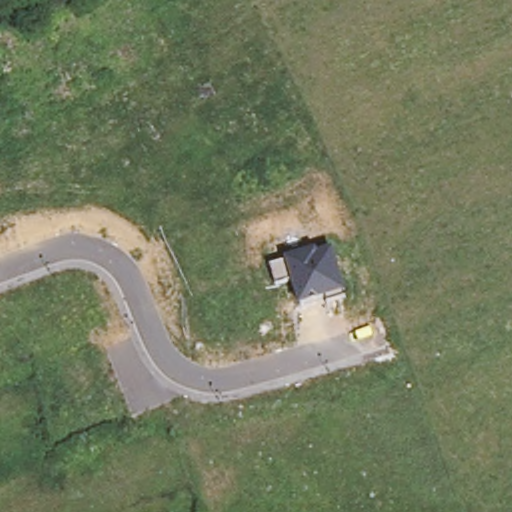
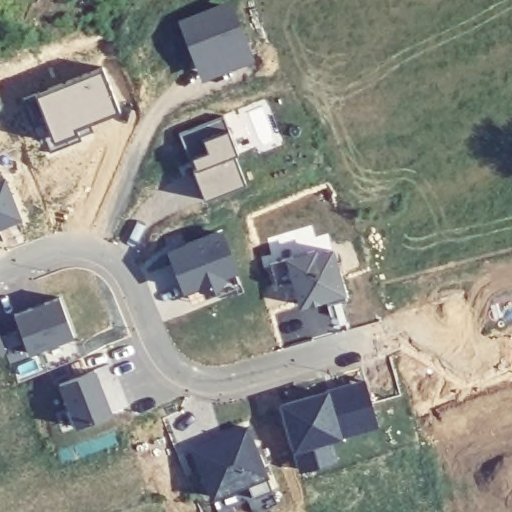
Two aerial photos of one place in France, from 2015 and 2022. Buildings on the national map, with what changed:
new [(255,60),(201,80),(176,20),(226,0),(231,0),(255,60)]
new [(229,129),(237,152),(234,154),(246,182),(205,199),(193,170),(196,169),(197,169),(192,157),(189,159),(180,134),(223,117),(229,129)]
new [(0,225),(0,179),(4,178),(20,217),(0,225)]
new [(190,297),(184,281),(170,246),(220,226),(234,262),(242,283),(190,297)]
unchanged [(292,280),(277,284),(270,264),(286,260),(286,256),(316,249),(316,252),(333,248),(345,293),(345,296),(327,301),(326,299),(300,306),(292,280)]
new [(75,335),(27,352),(12,313),(59,296),(75,335)]
new [(0,351),(0,336),(5,349),(0,351)]
new [(112,412),(76,426),(58,383),(95,370),(112,412)]
new [(301,470),(282,405),(326,392),(365,381),(367,386),(375,414),(377,424),(339,435),(329,438),(335,460),(325,463),(301,470)]
new [(220,438),(247,426),(272,490),(254,497),(247,482),(212,497),(192,449),(211,441),(220,438)]

